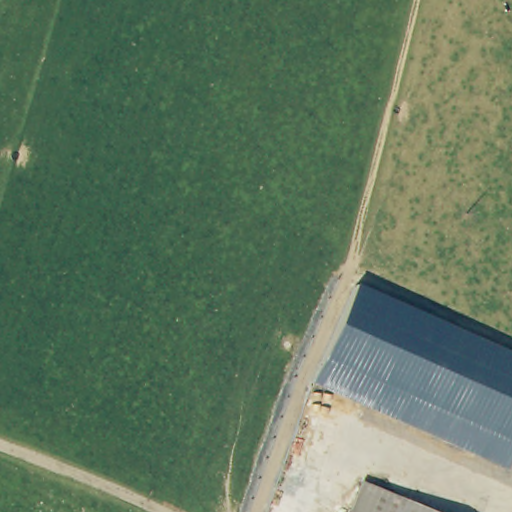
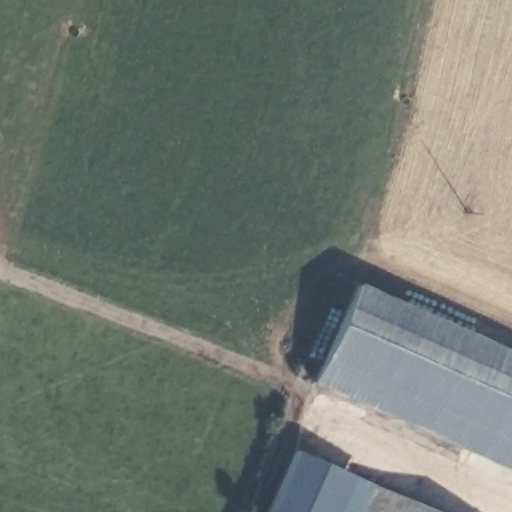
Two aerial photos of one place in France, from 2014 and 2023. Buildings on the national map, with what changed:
unchanged [(512,451),(503,470),(309,382),(354,285),(512,354),(512,451)]
new [(335,512),(266,512),(295,450),(350,476),(335,512)]
unchanged [(363,494),(367,485),(401,501),(425,512),(355,512),(363,494)]

